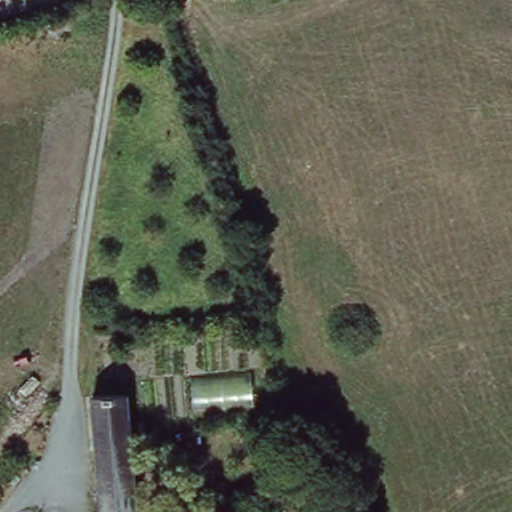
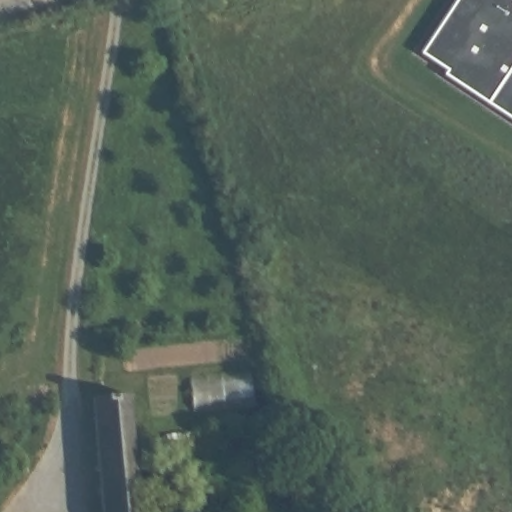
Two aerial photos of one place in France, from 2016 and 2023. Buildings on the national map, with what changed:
new [(444,75),(447,70),(421,53),(456,0),(512,0),(512,120),(444,75)]
unchanged [(124,395),(137,512),(99,512),(87,396),(124,395)]

